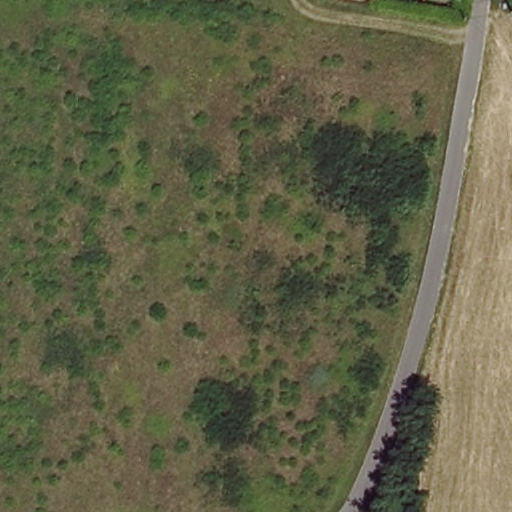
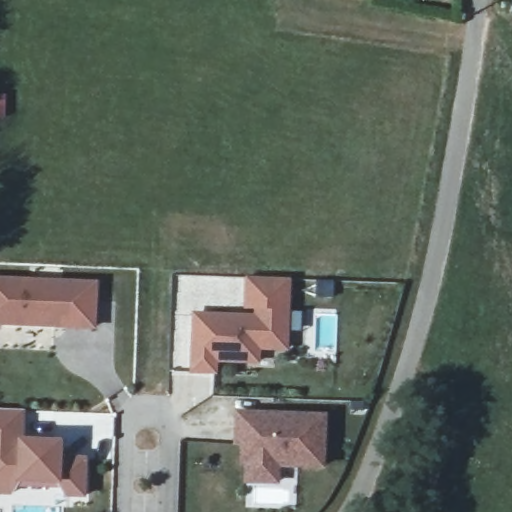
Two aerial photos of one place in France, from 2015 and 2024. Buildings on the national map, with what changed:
new [(99,281),(96,331),(0,327),(0,278),(99,281)]
new [(253,315),(253,310),(244,310),(244,278),(291,279),(289,352),(262,352),(262,365),(218,363),(217,375),(190,376),(192,312),(253,315)]
new [(26,411),(25,439),(64,442),(64,457),(87,459),(88,499),(65,499),(62,490),(18,488),(11,496),(0,496),(0,411),(26,411)]
new [(326,415),(324,471),(281,468),(280,485),(246,484),(247,469),(241,469),(241,446),(233,446),(236,411),(326,415)]

